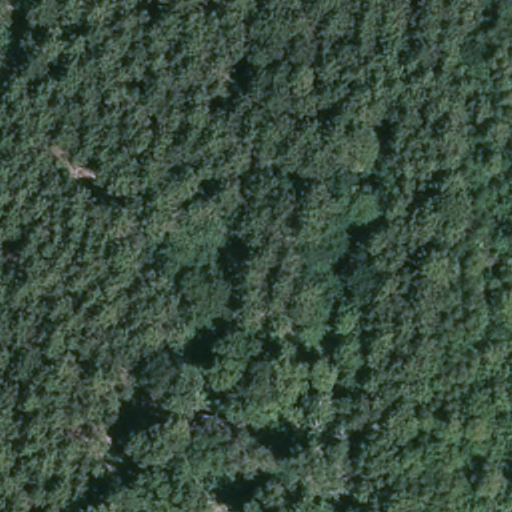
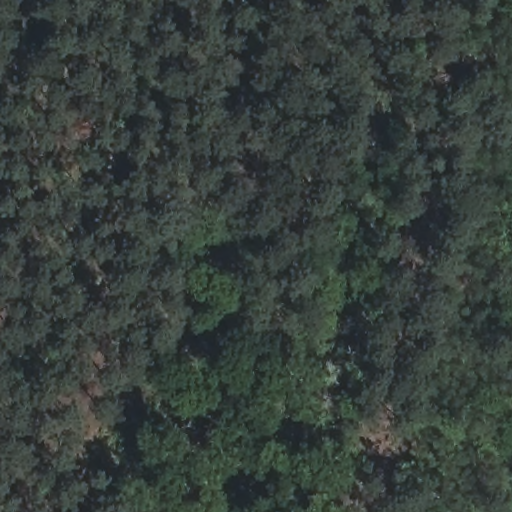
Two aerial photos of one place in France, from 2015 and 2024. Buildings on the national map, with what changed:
[]

